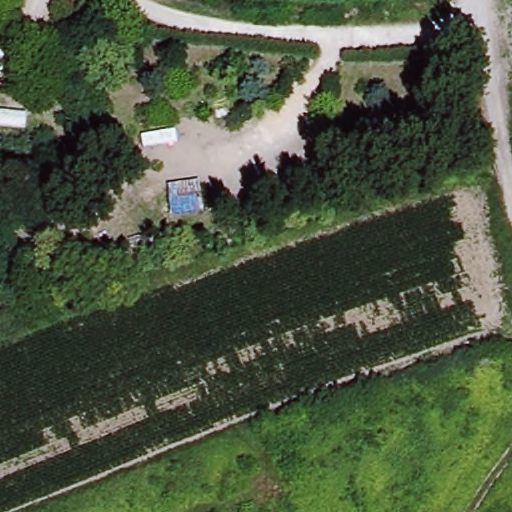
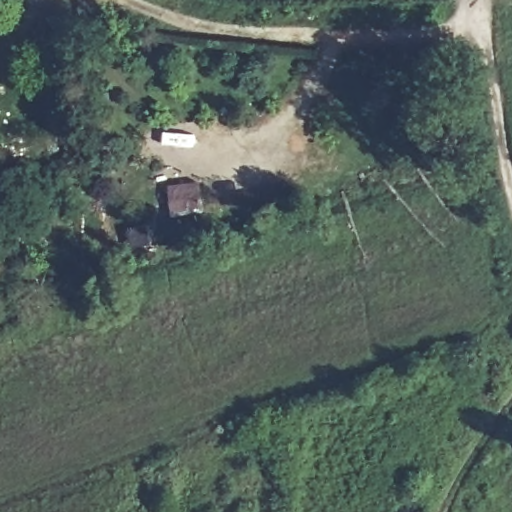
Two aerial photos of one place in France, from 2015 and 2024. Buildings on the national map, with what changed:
[]

